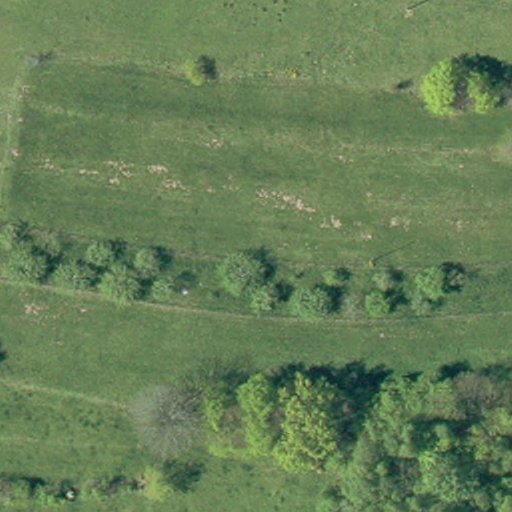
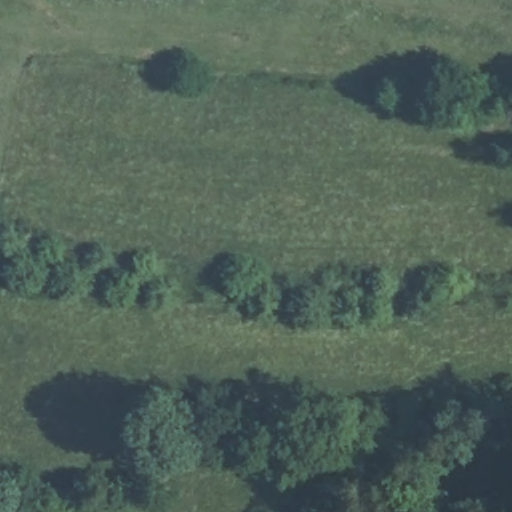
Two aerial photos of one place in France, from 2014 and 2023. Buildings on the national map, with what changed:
[]

